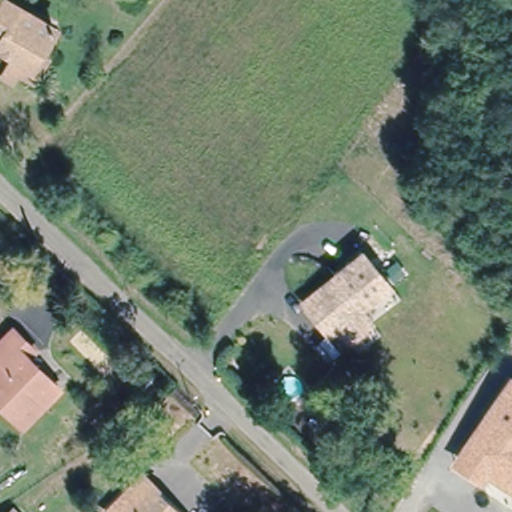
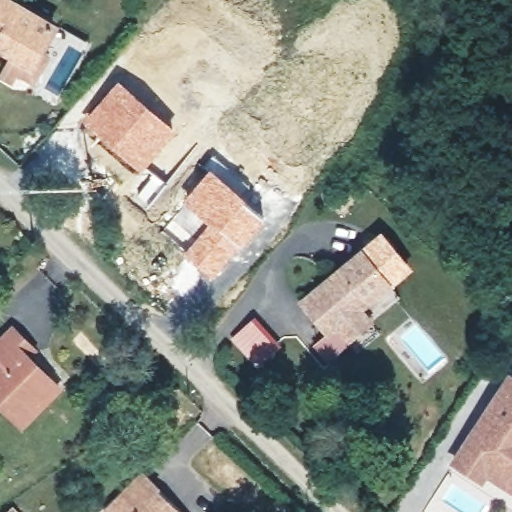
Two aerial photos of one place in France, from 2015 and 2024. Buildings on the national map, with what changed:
unchanged [(0,49),(3,44),(0,42),(0,0),(14,0),(59,26),(43,55),(35,68),(16,57),(0,49)]
new [(119,80),(177,131),(140,173),(83,121),(119,80)]
new [(210,168),(265,220),(210,281),(183,255),(196,236),(193,234),(202,222),(182,204),(210,168)]
unchanged [(329,330),(328,330),(299,298),(354,247),(384,280),(357,304),(329,330)]
unchanged [(329,330),(357,304),(369,316),(324,357),(313,343),(328,330),(329,330)]
new [(254,317),(280,347),(258,367),(231,338),(254,317)]
unchanged [(27,357),(59,388),(20,429),(0,409),(0,338),(9,328),(34,351),(27,357)]
unchanged [(491,465),(481,480),(455,463),(465,447),(512,377),(512,478),(491,465)]
unchanged [(143,475),(159,493),(156,496),(171,512),(104,512),(143,475)]

